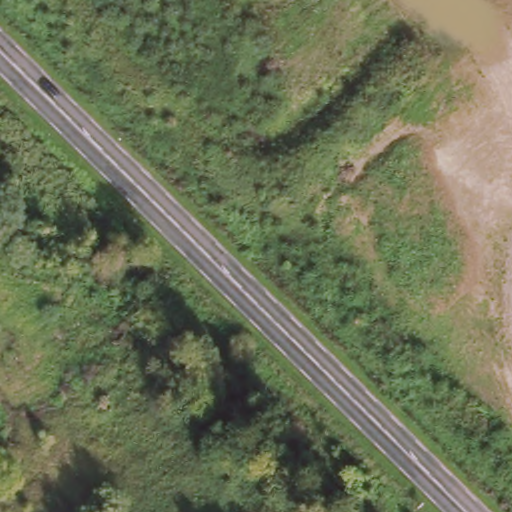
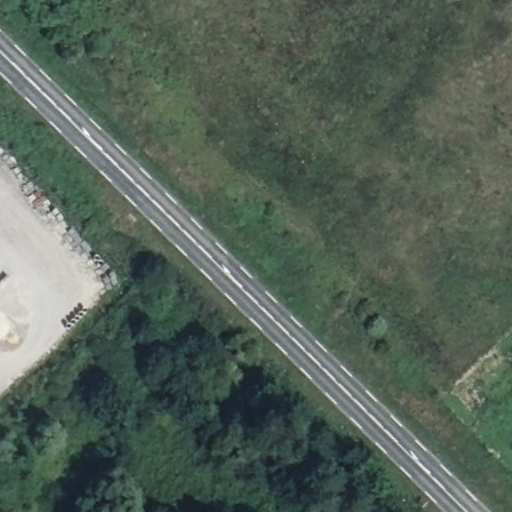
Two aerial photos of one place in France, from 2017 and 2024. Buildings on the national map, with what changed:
[]

